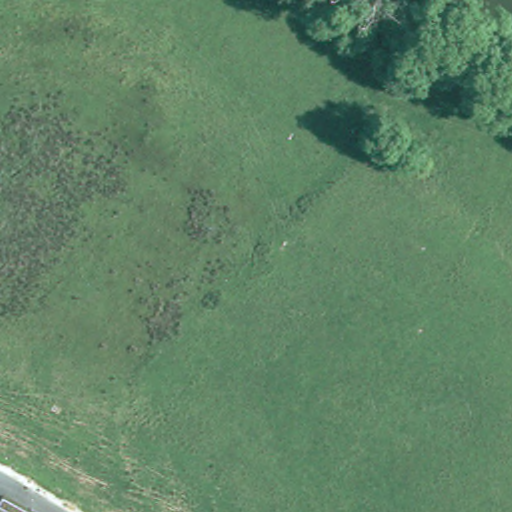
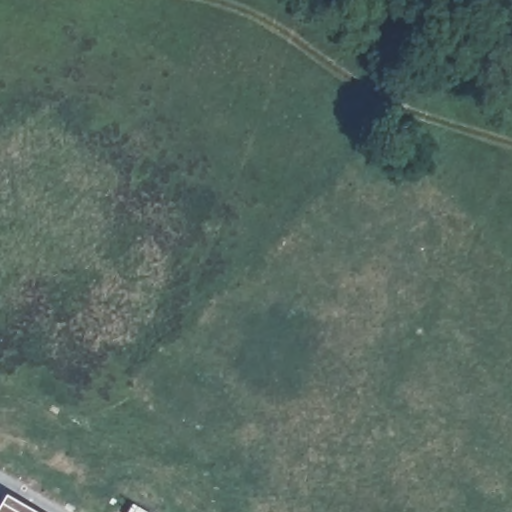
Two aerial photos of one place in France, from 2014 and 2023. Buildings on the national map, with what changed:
unchanged [(0,499),(5,491),(40,512),(0,512),(0,499)]

